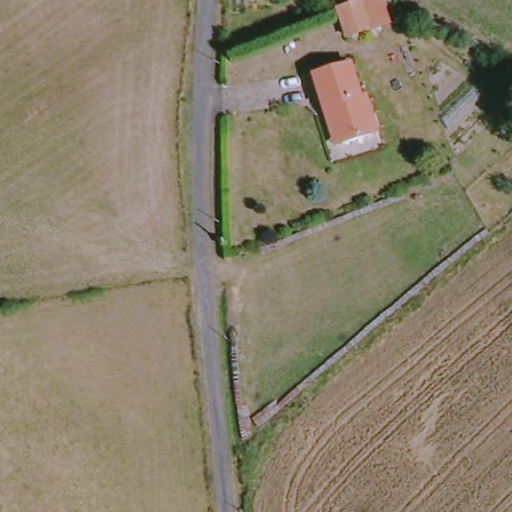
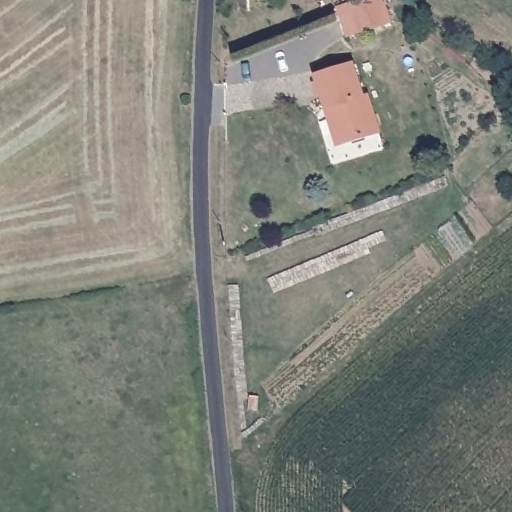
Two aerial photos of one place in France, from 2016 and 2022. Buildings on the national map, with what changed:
unchanged [(377,0),(382,24),(357,31),(350,4),(365,0),(377,0)]
unchanged [(325,108),(317,74),(357,64),(367,99),(373,98),(379,132),(345,141),(335,144),(325,108)]

